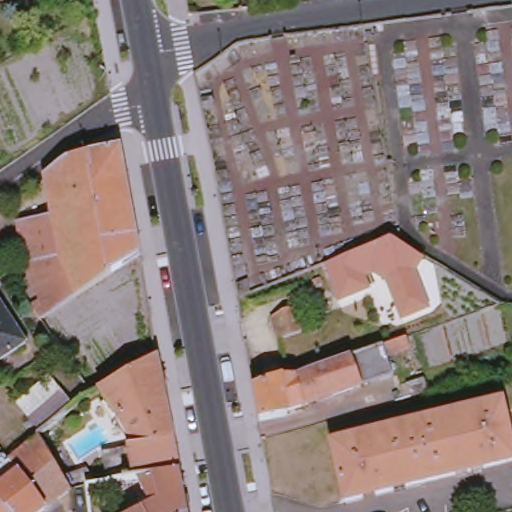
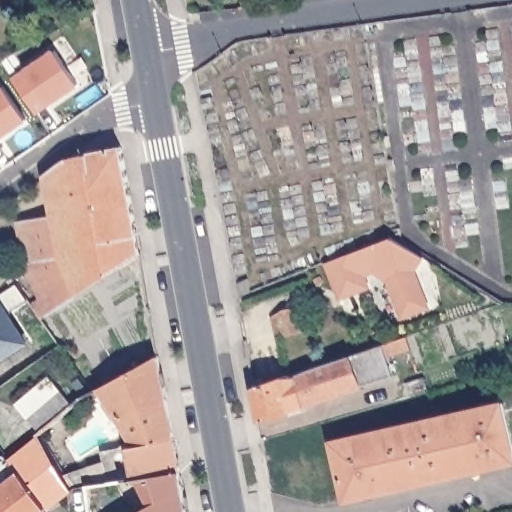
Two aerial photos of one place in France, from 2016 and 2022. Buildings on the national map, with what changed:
new [(77,86),(50,106),(37,114),(14,79),(26,70),(54,50),(77,86)]
new [(27,121),(0,141),(0,87),(2,85),(27,121)]
unchanged [(141,255),(105,277),(100,281),(85,291),(42,318),(31,303),(40,300),(25,265),(17,224),(52,217),(45,177),(44,176),(67,159),(88,154),(122,147),(141,255)]
unchanged [(420,275),(432,310),(403,320),(387,281),(382,283),(379,273),(367,277),(372,291),(340,303),(327,265),(394,242),(425,261),(420,275)]
unchanged [(299,335),(294,337),(272,345),(268,321),(280,315),(295,314),(302,300),(314,310),(299,335)]
unchanged [(25,343),(0,360),(0,304),(25,343)]
unchanged [(287,416),(288,421),(259,427),(253,392),(290,379),(292,381),(350,361),(382,350),(407,341),(410,353),(386,361),(392,381),(287,416)]
unchanged [(174,441),(135,447),(98,388),(157,355),(174,441)]
unchanged [(40,431),(15,404),(49,376),(72,404),(40,431)]
unchanged [(429,392),(412,397),(407,382),(424,377),(429,392)]
unchanged [(332,442),(503,402),(512,442),(512,463),(345,501),(332,442)]
unchanged [(86,486),(86,487),(85,488),(70,491),(46,510),(10,461),(37,439),(37,437),(37,435),(61,475),(87,467),(96,485),(86,486)]
unchanged [(180,472),(180,473),(134,480),(129,448),(135,447),(174,441),(180,472)]
unchanged [(46,510),(43,512),(7,512),(0,503),(0,469),(10,461),(46,510)]
unchanged [(140,512),(152,506),(134,480),(180,473),(188,512),(140,512)]
unchanged [(7,512),(0,512),(0,503),(7,512)]

